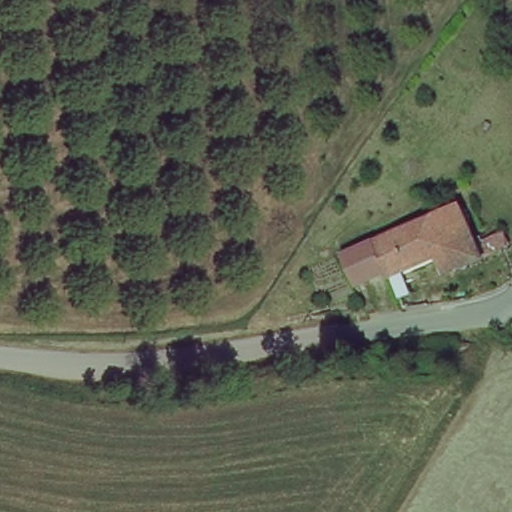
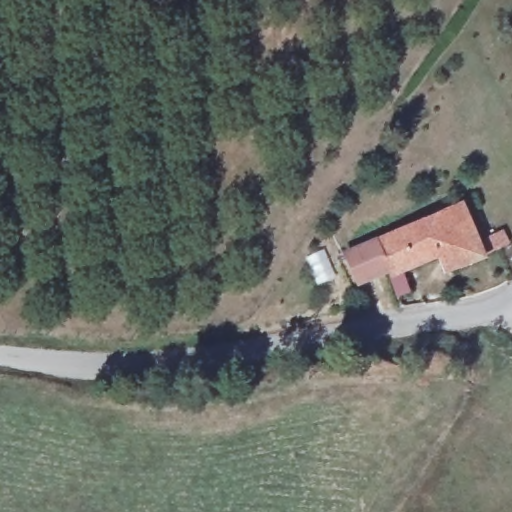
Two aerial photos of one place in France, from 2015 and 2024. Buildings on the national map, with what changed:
unchanged [(429,220),(466,204),(486,257),(453,272),(441,247),(429,220)]
unchanged [(341,260),(351,255),(368,247),(429,220),(441,247),(382,271),(353,284),(341,260)]
unchanged [(411,286),(421,301),(400,303),(392,289),(391,288),(411,286)]

